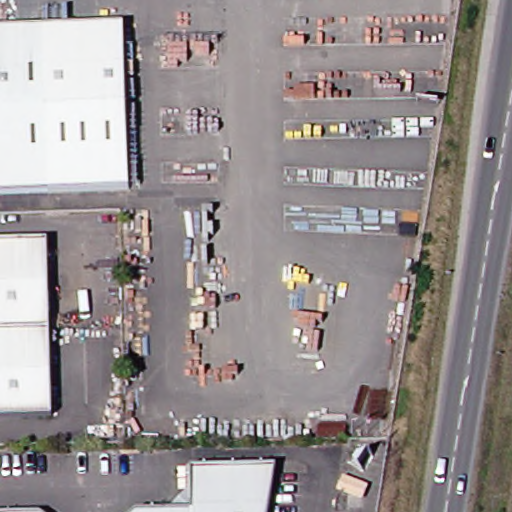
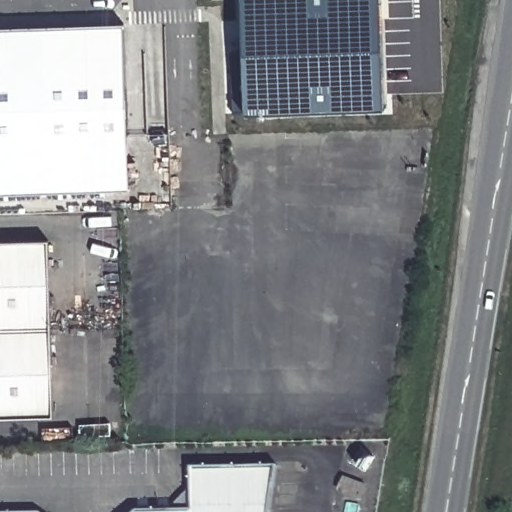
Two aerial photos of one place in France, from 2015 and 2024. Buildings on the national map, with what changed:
new [(384,108),(246,113),(242,0),(380,0),(384,108)]
unchanged [(0,31),(125,26),(131,191),(0,195),(0,31)]
unchanged [(42,333),(45,415),(0,417),(0,240),(39,239),(42,333)]
unchanged [(188,469),(275,467),(266,512),(171,512),(189,511),(188,469)]

